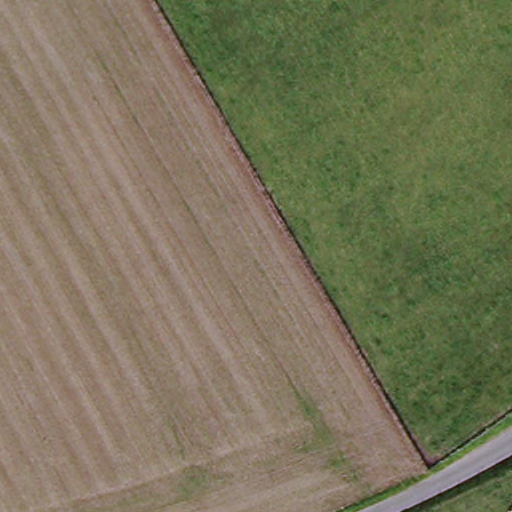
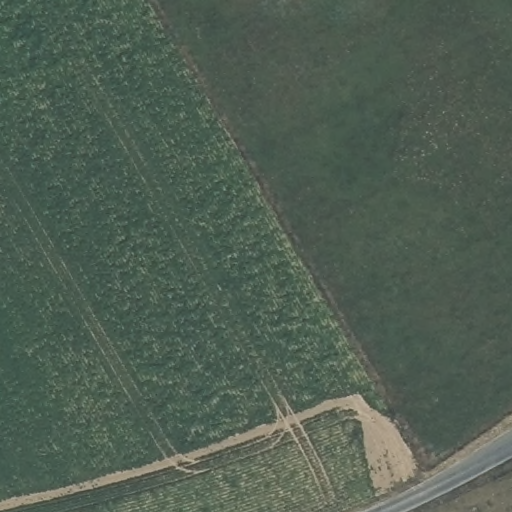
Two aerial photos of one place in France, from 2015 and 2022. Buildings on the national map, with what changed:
[]

